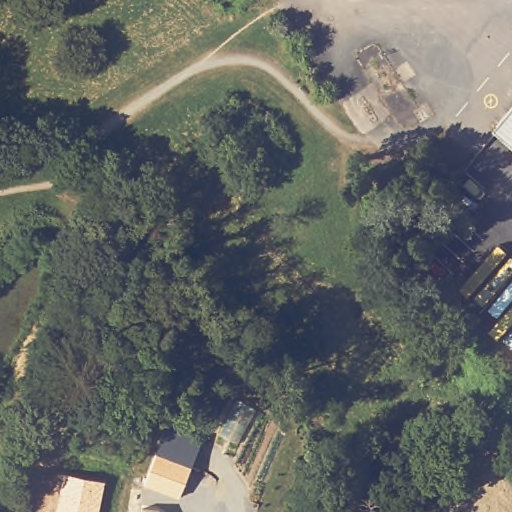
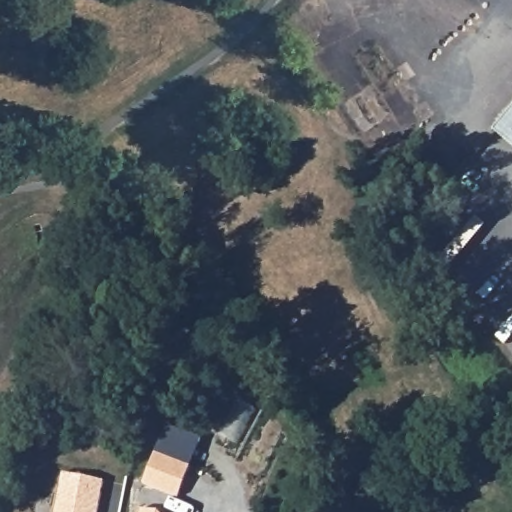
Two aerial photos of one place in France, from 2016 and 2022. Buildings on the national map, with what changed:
unchanged [(422,110),(428,118),(419,123),(414,115),(422,110)]
unchanged [(512,114),(512,143),(498,131),(512,114)]
unchanged [(141,485),(156,443),(194,457),(179,498),(141,485)]
unchanged [(105,480),(99,512),(55,512),(63,473),(105,480)]
unchanged [(140,512),(140,509),(158,512),(140,512)]

